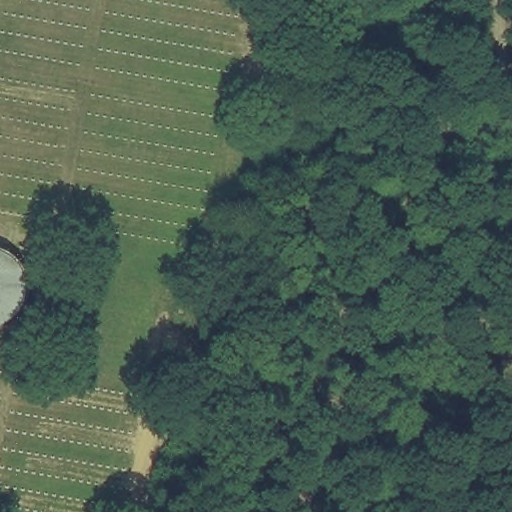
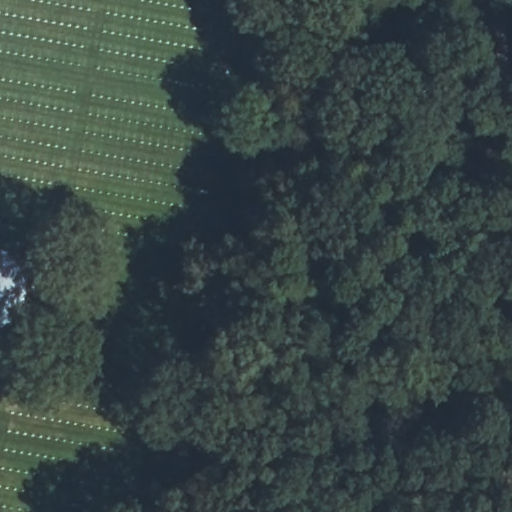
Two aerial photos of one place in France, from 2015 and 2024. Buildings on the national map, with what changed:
unchanged [(0,248),(9,251),(17,255),(25,262),(30,270),(30,271),(33,279),(35,288),(34,298),(30,308),(25,317),(25,318),(18,323),(10,328),(2,331),(0,331),(0,248)]

